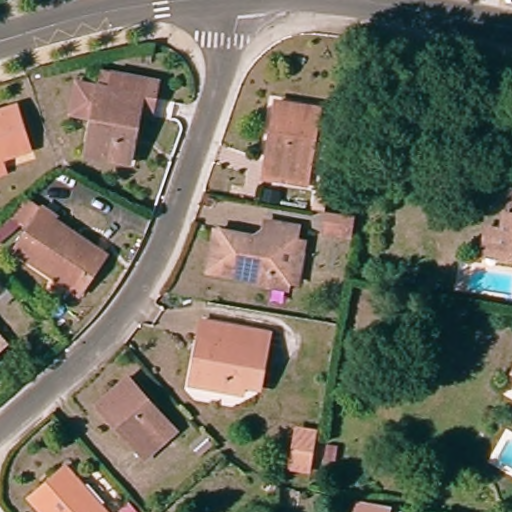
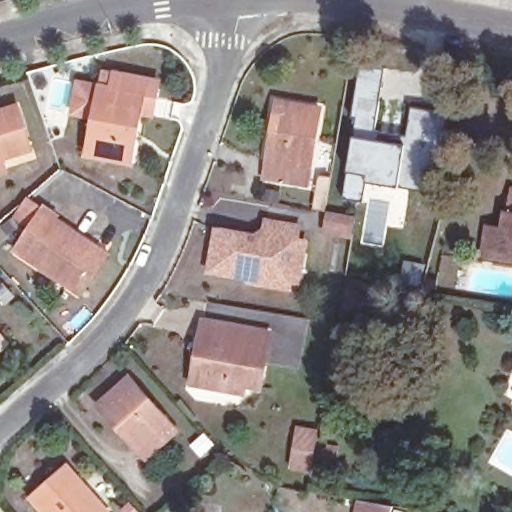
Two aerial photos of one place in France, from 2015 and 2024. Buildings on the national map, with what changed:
new [(352,127),(354,98),(359,64),(383,67),(374,138),(351,134),(352,127)]
unchanged [(113,78),(159,87),(156,105),(153,119),(137,116),(136,119),(132,118),(125,143),(131,145),(127,167),(84,159),(92,122),(67,116),(75,86),(99,92),(109,94),(113,78)]
unchanged [(264,172),(275,98),(318,105),(307,178),(264,172)]
new [(403,143),(410,105),(446,112),(428,191),(398,186),(403,143)]
unchanged [(24,154),(0,162),(0,116),(12,112),(24,154)]
new [(351,134),(374,138),(403,143),(398,186),(365,181),(362,200),(341,197),(351,134)]
unchanged [(0,168),(2,175),(0,176),(0,168)]
unchanged [(320,221),(314,221),(317,204),(311,203),(316,180),(318,171),(328,173),(327,182),(323,204),(344,207),(341,224),(320,221)]
unchanged [(49,223),(63,230),(64,229),(84,238),(105,250),(81,293),(12,256),(24,232),(8,225),(20,203),(35,210),(50,218),(49,223)]
unchanged [(489,224),(503,228),(504,225),(507,210),(510,211),(512,204),(512,256),(497,252),(483,248),(489,224)]
unchanged [(292,285),(283,283),(281,290),(271,288),(258,285),(255,279),(215,271),(224,234),(255,240),(258,224),(291,230),(289,242),(299,244),(292,285)]
unchanged [(236,325),(263,330),(259,347),(253,382),(240,381),(237,393),(186,383),(192,357),(203,359),(208,339),(195,336),(200,319),(236,325)]
unchanged [(0,342),(0,336),(3,339),(0,342)]
unchanged [(142,457),(109,421),(94,404),(127,375),(164,416),(174,427),(142,457)]
unchanged [(285,457),(288,434),(309,438),(305,464),(304,473),(283,470),(285,457)]
unchanged [(61,466),(101,512),(37,512),(25,496),(61,466)]
unchanged [(364,502),(389,506),(387,512),(351,512),(354,501),(364,502)]

